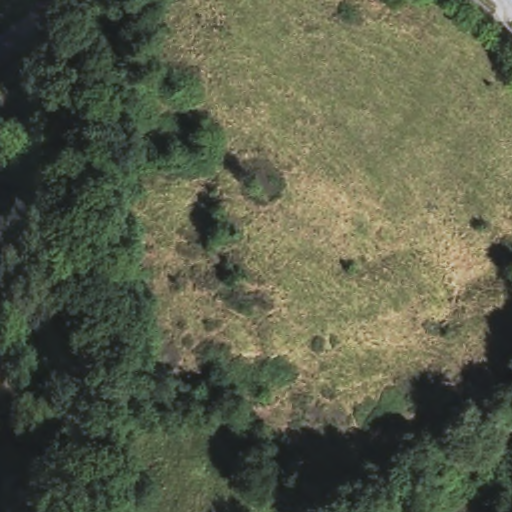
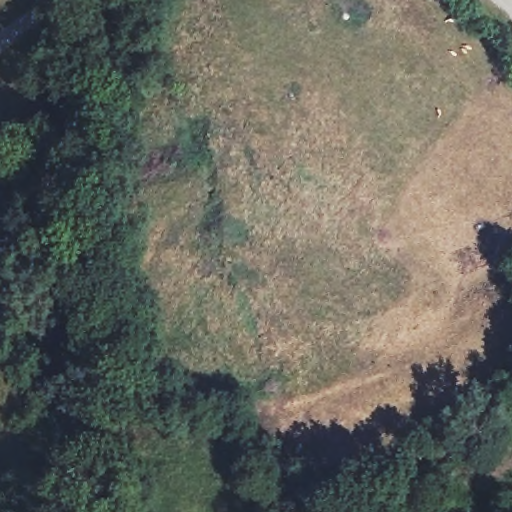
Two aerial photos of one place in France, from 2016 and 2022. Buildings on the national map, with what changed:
[]

